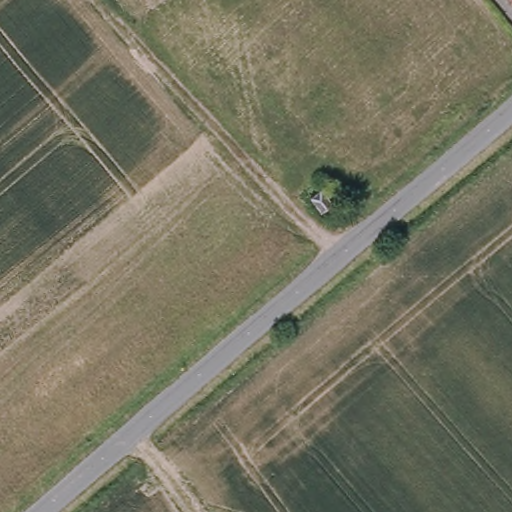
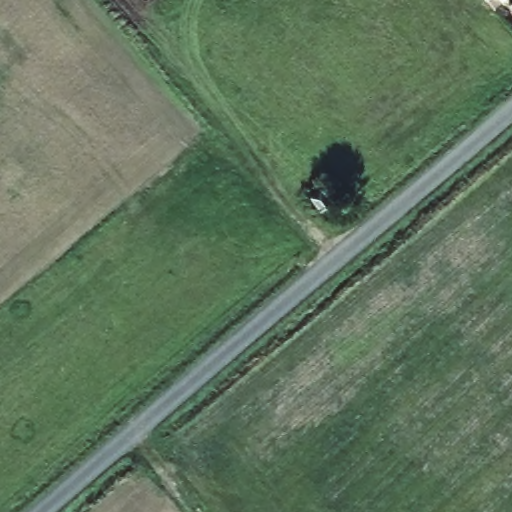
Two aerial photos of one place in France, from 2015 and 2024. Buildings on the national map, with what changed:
unchanged [(512,0),(512,8),(505,0),(512,0)]
unchanged [(320,183),(330,196),(320,205),(309,192),(320,183)]

